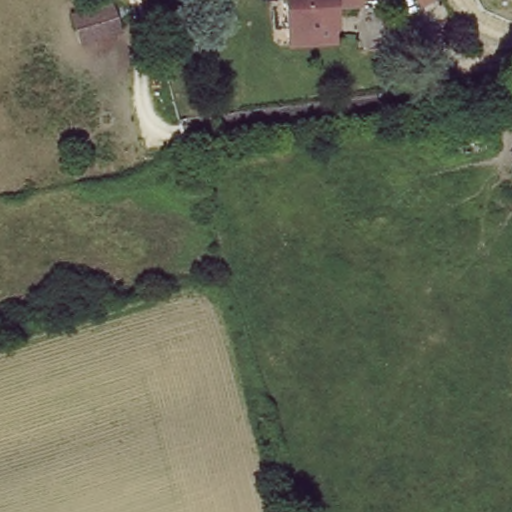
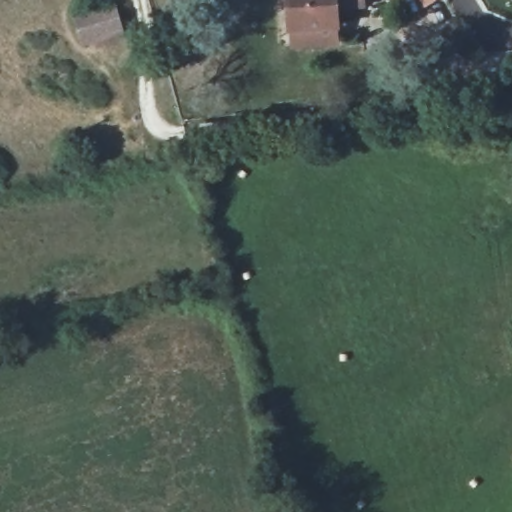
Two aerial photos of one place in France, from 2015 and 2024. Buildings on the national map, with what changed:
unchanged [(293,43),(292,29),(290,0),(365,0),(365,9),(339,10),(339,26),(340,40),(293,43)]
unchanged [(423,4),(420,0),(429,0),(423,4)]
unchanged [(85,49),(75,16),(117,5),(126,37),(85,49)]

